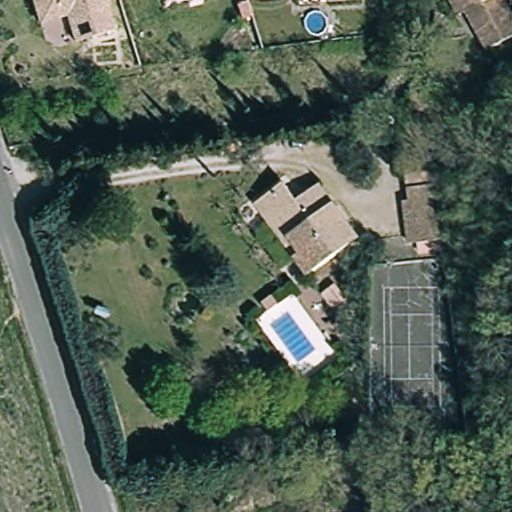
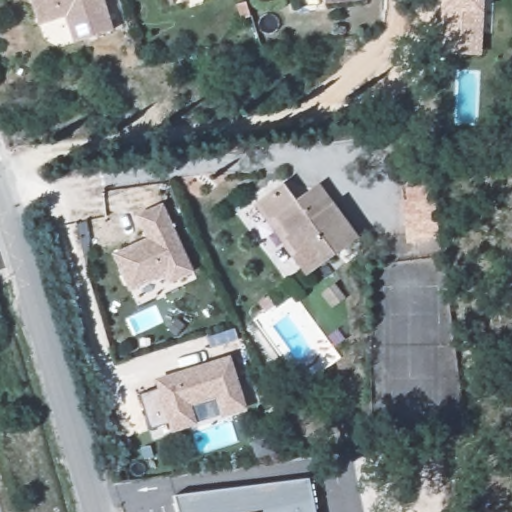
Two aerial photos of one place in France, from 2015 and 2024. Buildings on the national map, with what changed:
unchanged [(33,0),(101,0),(111,30),(75,41),(67,14),(40,22),(33,0)]
unchanged [(510,40),(475,51),(462,10),(451,14),(446,0),(512,0),(512,49),(510,40)]
unchanged [(231,146),(220,148),(217,136),(228,133),(231,146)]
unchanged [(295,196),(305,190),(317,183),(331,204),(355,242),(304,272),(293,253),(297,251),(275,214),(269,217),(257,199),(284,181),(295,196)]
unchanged [(405,244),(396,201),(403,200),(402,187),(425,182),(437,237),(405,244)]
new [(147,232),(137,210),(161,198),(192,265),(168,276),(164,267),(129,283),(113,248),(147,232)]
new [(157,373),(189,364),(197,362),(228,352),(243,401),(222,407),(217,388),(187,397),(193,415),(173,422),(170,415),(149,422),(138,387),(160,380),(157,373)]
new [(314,512),(180,512),(174,488),(309,471),(314,512)]

